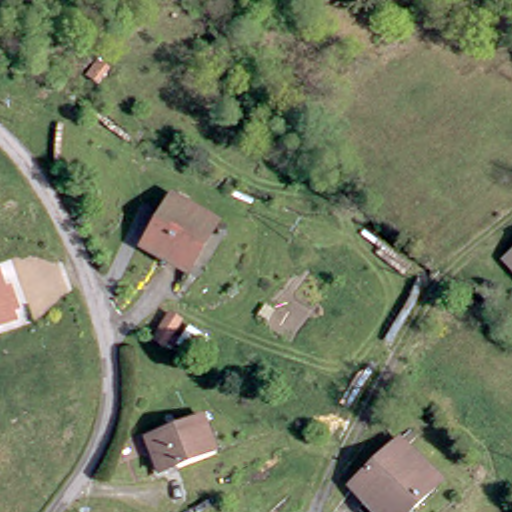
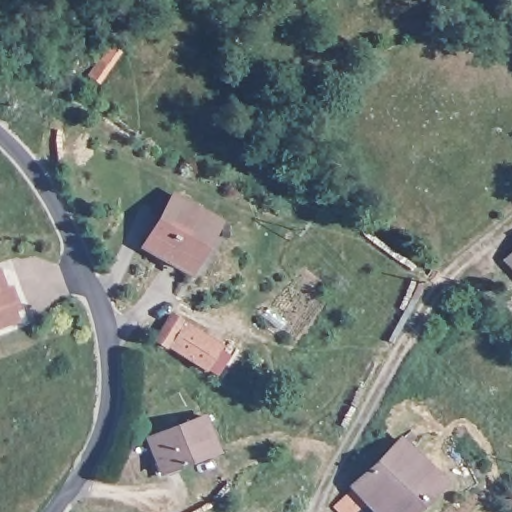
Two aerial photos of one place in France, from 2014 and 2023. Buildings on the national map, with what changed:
unchanged [(224,225),(196,272),(154,250),(181,201),(224,225)]
unchanged [(512,256),(512,266),(507,260),(512,256)]
unchanged [(0,266),(8,285),(14,282),(24,311),(18,315),(21,323),(0,329),(0,266)]
new [(171,314),(223,344),(206,374),(156,343),(171,314)]
unchanged [(221,457),(164,481),(149,448),(206,423),(221,457)]
unchanged [(361,504),(348,491),(401,444),(411,455),(361,504)]
unchanged [(435,461),(427,470),(451,495),(434,512),(370,512),(361,504),(411,455),(419,446),(435,461)]

